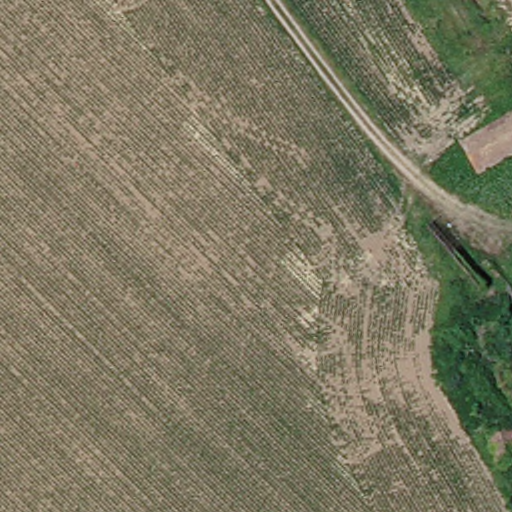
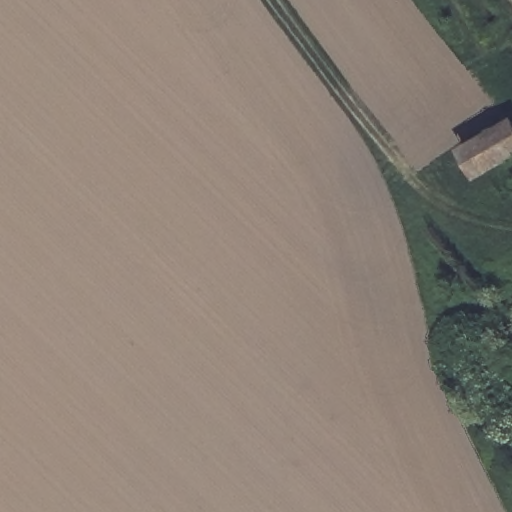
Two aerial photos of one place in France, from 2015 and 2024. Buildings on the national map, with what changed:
unchanged [(512,155),(479,172),(465,142),(512,120),(512,155)]
unchanged [(512,432),(512,464),(499,439),(512,432)]

